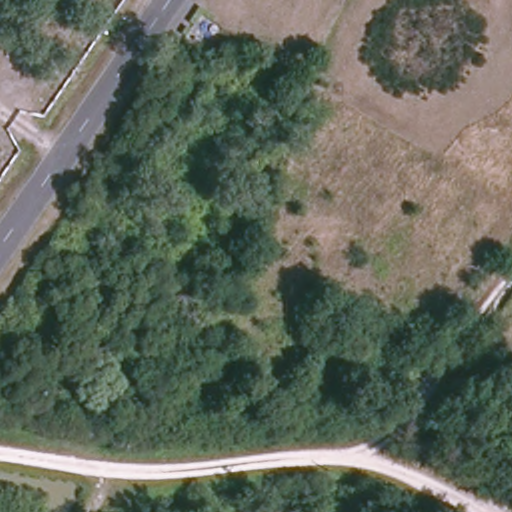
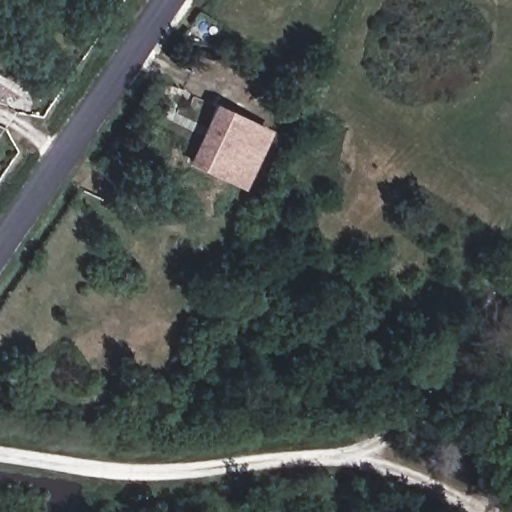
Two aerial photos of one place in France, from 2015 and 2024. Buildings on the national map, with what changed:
new [(215,104),(273,130),(246,188),(190,160),(215,104)]

